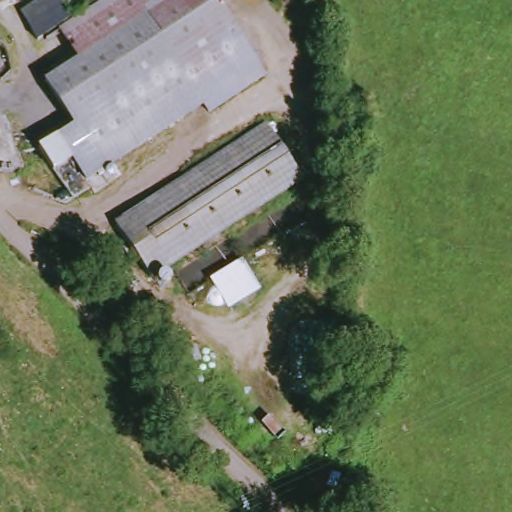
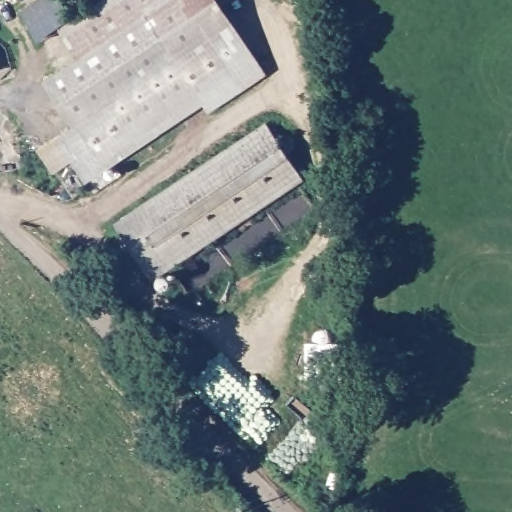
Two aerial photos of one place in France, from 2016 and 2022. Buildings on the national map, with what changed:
unchanged [(77,7),(41,24),(30,0),(74,0),(77,7)]
unchanged [(105,0),(221,0),(264,91),(206,118),(199,106),(71,166),(58,139),(51,123),(68,115),(46,67),(83,49),(68,17),(105,0)]
unchanged [(5,73),(0,74),(0,47),(5,73)]
unchanged [(19,125),(27,164),(0,169),(0,129),(19,125)]
unchanged [(307,194),(145,271),(118,214),(280,138),(307,194)]

